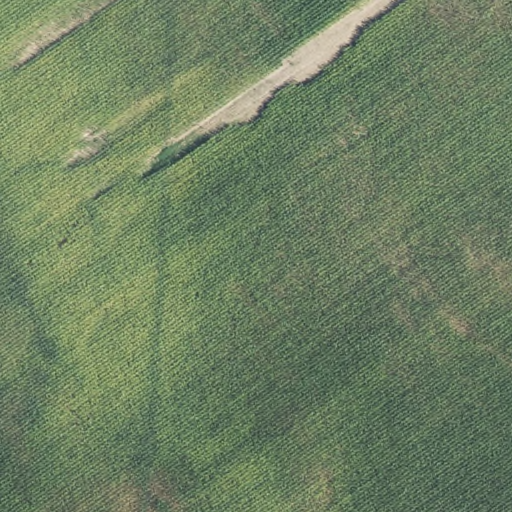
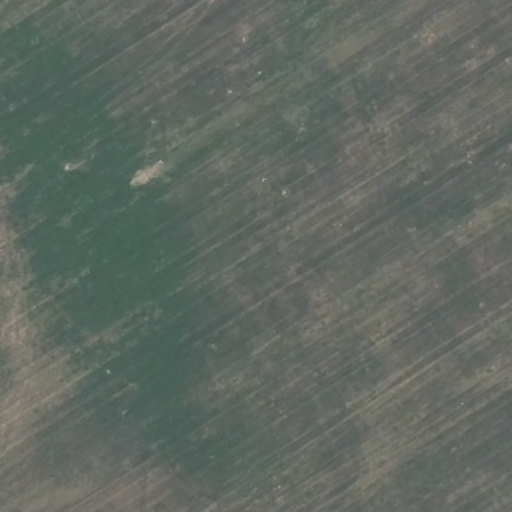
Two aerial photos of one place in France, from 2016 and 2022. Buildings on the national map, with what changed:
[]

